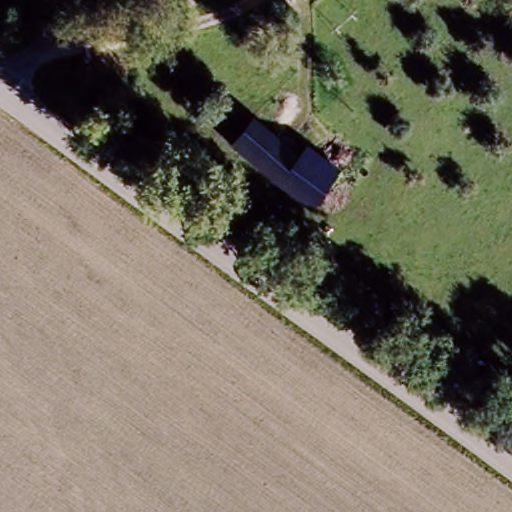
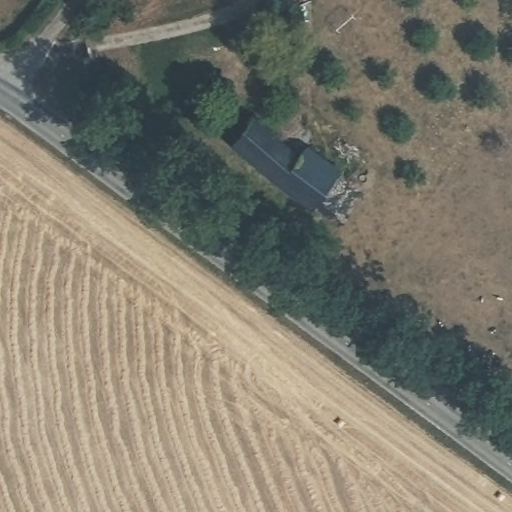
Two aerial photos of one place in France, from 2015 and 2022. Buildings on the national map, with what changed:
unchanged [(334,174),(307,207),(228,145),(248,121),(295,159),(303,149),(334,174)]

